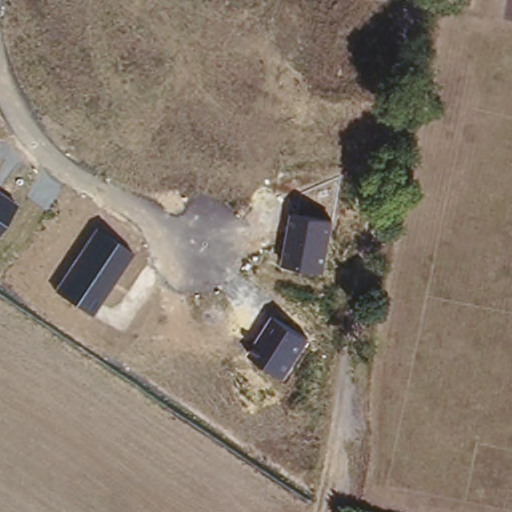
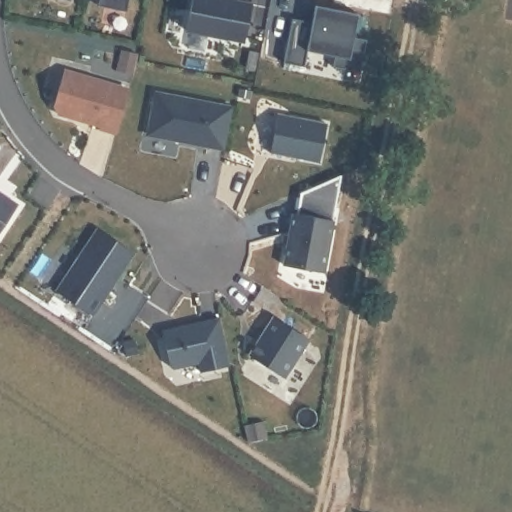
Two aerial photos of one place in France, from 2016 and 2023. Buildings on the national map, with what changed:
new [(97,0),(127,0),(126,10),(97,4),(97,0)]
new [(246,38),(186,30),(190,0),(233,0),(251,4),(246,38)]
new [(357,11),(354,33),(367,36),(360,69),(331,63),(335,53),(306,49),(303,64),(281,60),(291,16),(309,18),(314,5),(357,11)]
new [(114,130),(100,128),(100,123),(55,111),(52,101),(60,69),(127,86),(114,130)]
new [(225,104),(223,148),(149,141),(153,98),(225,104)]
new [(263,149),(264,145),(258,144),(265,106),(277,108),(276,113),(326,121),(319,159),(263,149)]
unchanged [(340,173),(325,276),(281,267),(292,211),(299,213),(300,189),(340,173)]
unchanged [(21,202),(0,232),(0,187),(21,202)]
unchanged [(135,253),(94,316),(55,289),(97,225),(135,253)]
unchanged [(313,339),(285,382),(245,356),(273,314),(313,339)]
new [(227,365),(200,371),(198,363),(169,365),(163,327),(217,315),(227,365)]

